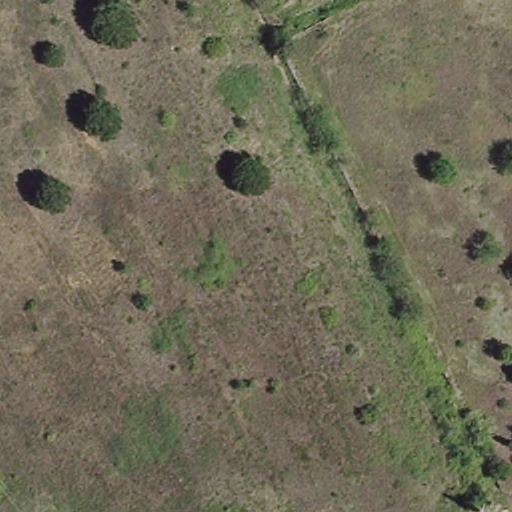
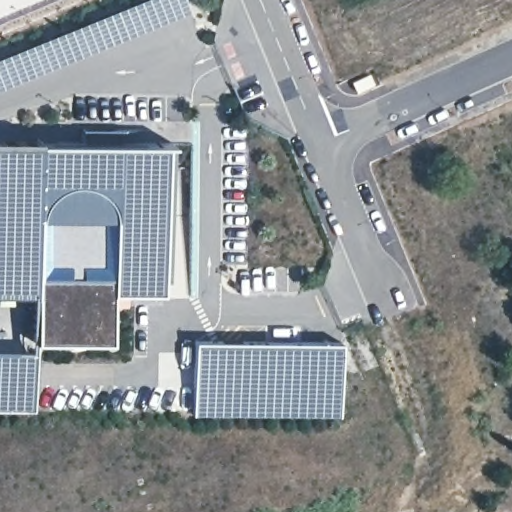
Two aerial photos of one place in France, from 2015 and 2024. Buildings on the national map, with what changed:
new [(0,90),(0,56),(136,0),(185,0),(191,12),(0,90)]
new [(168,144),(164,295),(114,295),(113,344),(38,344),(36,412),(0,412),(0,142),(168,144)]
new [(194,342),(342,342),(341,416),(194,415),(194,342)]

